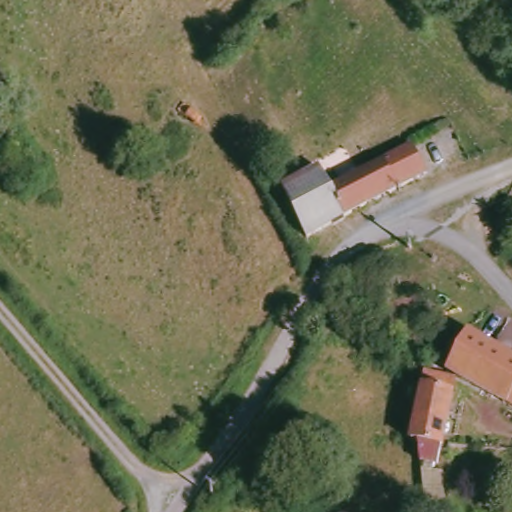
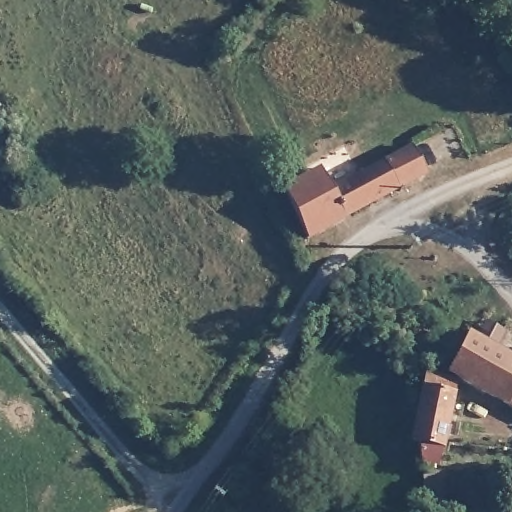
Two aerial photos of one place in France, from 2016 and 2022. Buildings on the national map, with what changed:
unchanged [(425,170),(305,234),(281,187),(319,165),(330,186),(411,143),(425,170)]
unchanged [(503,402),(443,366),(462,328),(512,357),(512,385),(503,402)]
unchanged [(419,382),(422,373),(422,371),(446,378),(424,461),(421,460),(414,458),(407,455),(402,442),(416,392),(419,382)]
unchanged [(503,402),(512,385),(512,408),(503,402)]

